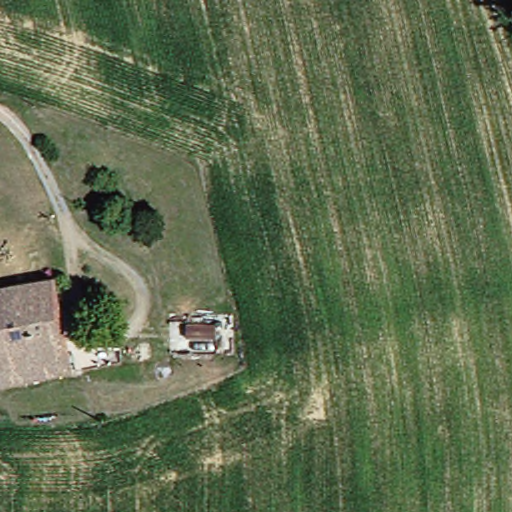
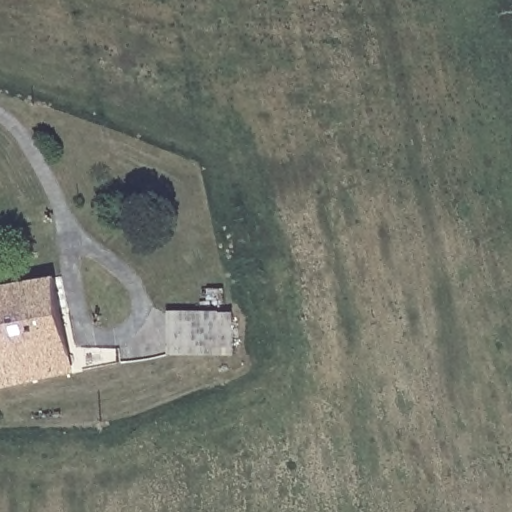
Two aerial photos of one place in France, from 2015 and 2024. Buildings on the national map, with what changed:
unchanged [(0,285),(41,279),(46,308),(53,348),(59,379),(0,388),(0,285)]
new [(166,311),(233,312),(232,356),(166,355),(166,311)]

